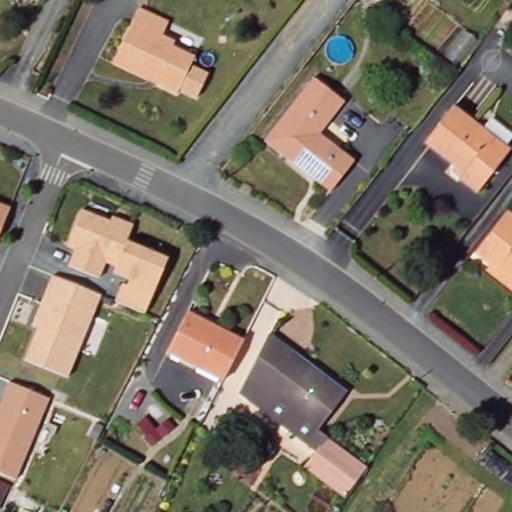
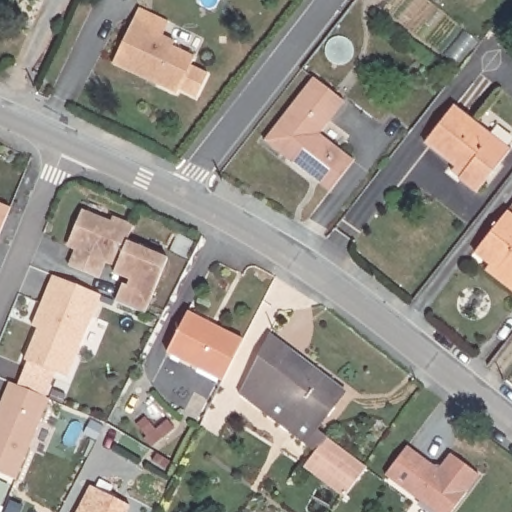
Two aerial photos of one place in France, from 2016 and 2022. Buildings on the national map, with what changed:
unchanged [(173,51),(195,62),(178,99),(113,69),(133,27),(139,14),(169,27),(163,41),(175,47),(173,51)]
unchanged [(314,134),(349,161),(329,186),(314,175),(304,176),(259,141),(308,78),(339,102),(314,134)]
unchanged [(510,145),(476,188),(458,174),(463,167),(455,161),(424,137),(453,101),(510,145)]
unchanged [(0,234),(0,204),(10,209),(0,234)]
unchanged [(486,265),(489,260),(475,247),(506,207),(512,211),(512,285),(486,265)]
unchanged [(84,208),(113,220),(115,215),(136,223),(129,240),(172,256),(150,308),(120,296),(126,282),(131,284),(133,277),(117,271),(120,265),(109,260),(102,276),(72,264),(80,242),(72,239),(84,208)]
unchanged [(101,295),(67,377),(24,360),(39,325),(31,323),(52,273),(101,295)]
unchanged [(223,376),(167,347),(187,307),(243,336),(223,376)]
unchanged [(346,392),(317,430),(327,437),(327,438),(366,468),(344,497),(304,466),(315,452),(238,393),(269,335),(346,392)]
unchanged [(16,478),(0,471),(0,405),(10,381),(48,395),(16,478)]
new [(438,469),(450,453),(479,475),(452,512),(435,512),(387,476),(385,475),(407,445),(438,469)]
new [(1,496),(0,500),(0,481),(7,484),(1,496)]

